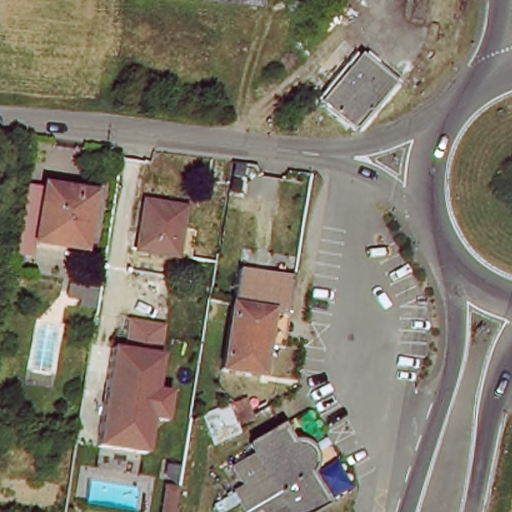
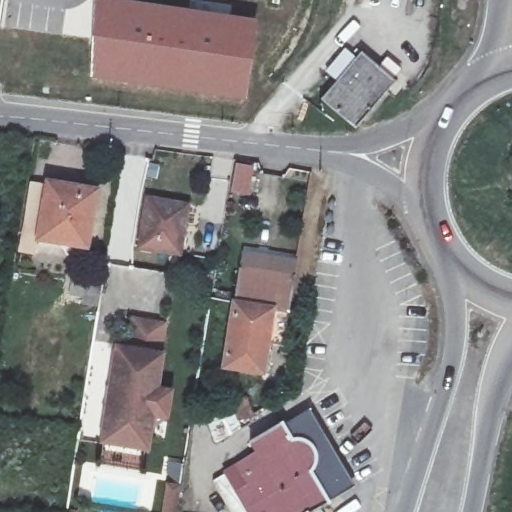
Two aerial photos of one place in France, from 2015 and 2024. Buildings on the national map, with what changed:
new [(128,0),(258,20),(246,101),(92,79),(95,0),(128,0)]
unchanged [(324,97),(366,55),(396,84),(357,127),(324,97)]
unchanged [(98,189),(88,249),(40,240),(50,180),(98,189)]
unchanged [(191,210),(182,259),(144,251),(148,204),(191,210)]
unchanged [(250,417),(242,419),(235,399),(223,372),(237,303),(244,267),(298,275),(291,312),(285,347),(274,344),(273,348),(266,374),(244,369),(251,394),(258,414),(250,417)]
unchanged [(171,357),(165,392),(178,394),(173,424),(160,422),(154,455),(105,447),(122,348),(171,357)]
unchanged [(286,424),(297,442),(302,441),(307,442),(311,445),(314,450),(319,458),(319,463),(317,468),(312,473),(329,505),(317,512),(248,512),(238,493),(247,488),(236,468),(260,454),(253,441),(286,424)]
unchanged [(167,482),(181,484),(177,512),(163,512),(167,482)]

